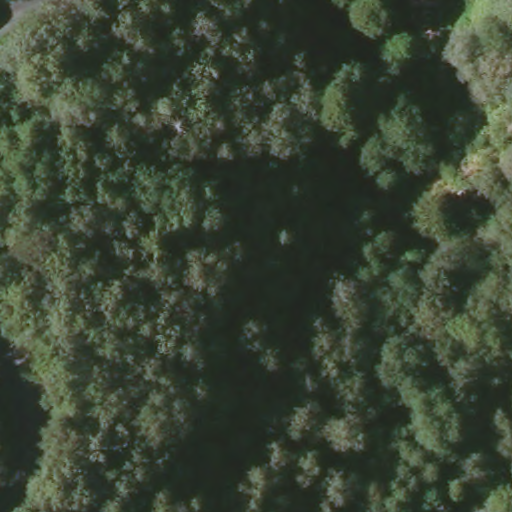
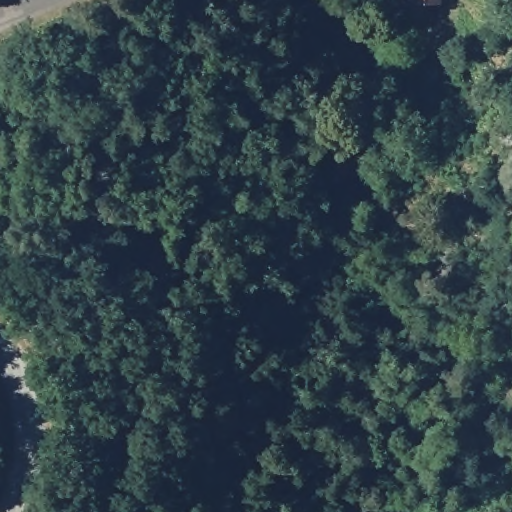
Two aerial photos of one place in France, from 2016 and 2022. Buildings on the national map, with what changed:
unchanged [(447,0),(446,5),(414,4),(414,0),(447,0)]
unchanged [(440,136),(412,131),(419,85),(428,86),(430,79),(440,80),(440,88),(446,89),(440,136)]

